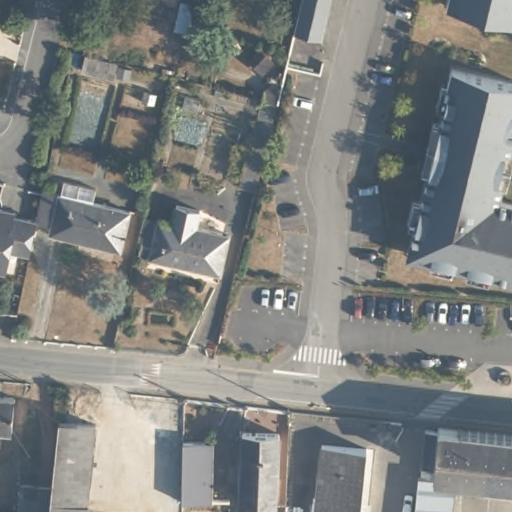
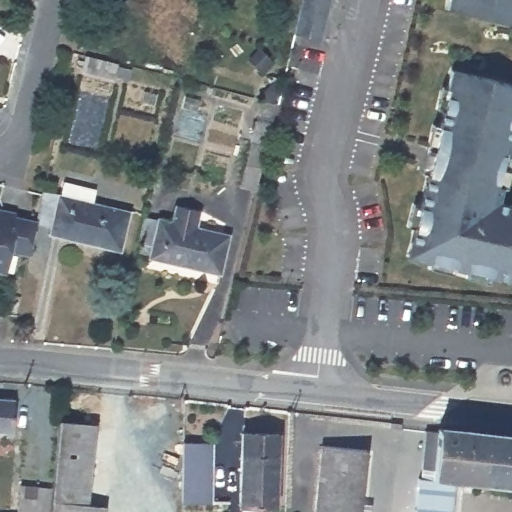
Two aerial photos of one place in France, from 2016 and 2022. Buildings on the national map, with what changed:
unchanged [(322,36),(293,29),(300,0),(330,0),(322,36)]
unchanged [(449,0),(512,0),(512,22),(447,7),(449,0)]
unchanged [(107,76),(82,70),(86,53),(112,59),(107,76)]
unchanged [(455,266),(453,274),(431,268),(432,261),(407,255),(414,229),(409,227),(414,204),(422,206),(430,175),(422,173),(434,125),(441,127),(445,111),(437,109),(442,88),(447,89),(452,70),(512,84),(512,151),(512,183),(511,189),(503,188),(500,202),(512,206),(512,281),(491,275),(490,283),(467,277),(468,270),(455,266)]
unchanged [(240,183),(255,115),(275,119),(257,187),(240,183)]
unchanged [(40,187),(56,191),(60,178),(98,189),(95,202),(126,211),(116,249),(69,237),(70,232),(47,226),(48,221),(32,218),(38,191),(40,187)]
unchanged [(171,217),(175,204),(198,210),(195,223),(229,232),(219,271),(147,254),(148,250),(137,248),(140,239),(137,238),(142,214),(156,217),(157,214),(171,217)]
unchanged [(7,250),(2,270),(0,270),(0,210),(10,212),(10,216),(32,220),(25,253),(7,250)]
unchanged [(13,397),(11,429),(0,429),(0,396),(13,397)]
unchanged [(86,512),(48,512),(52,488),(60,420),(95,424),(86,512)]
unchanged [(450,512),(412,512),(417,476),(420,476),(421,466),(425,428),(440,430),(439,427),(512,436),(512,480),(455,474),(450,512)]
unchanged [(242,431),(279,432),(276,506),(239,505),(242,431)]
unchanged [(212,442),(211,503),(182,502),(184,440),(212,442)]
unchanged [(368,448),(363,512),(317,512),(323,444),(368,448)]
unchanged [(18,512),(21,484),(52,488),(48,512),(18,512)]

